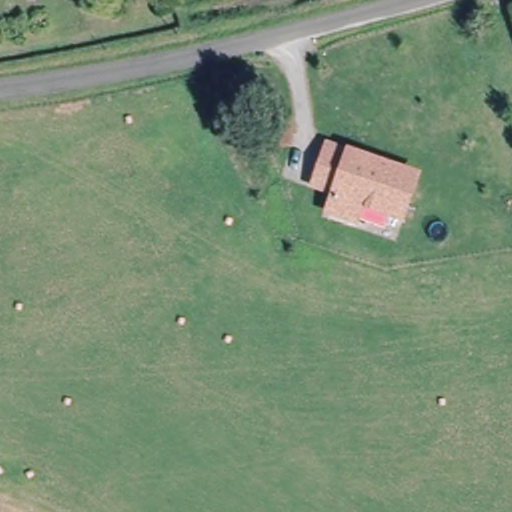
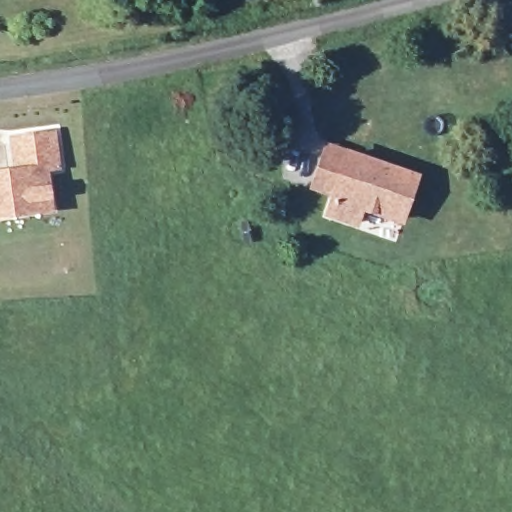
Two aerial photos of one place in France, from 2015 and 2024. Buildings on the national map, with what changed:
new [(61,169),(51,172),(55,214),(0,222),(0,171),(13,170),(8,136),(57,128),(61,169)]
unchanged [(405,218),(396,214),(393,214),(368,205),(366,214),(363,222),(336,213),(335,212),(342,192),(321,185),(325,171),(334,145),(420,174),(412,197),(406,214),(405,218)]

